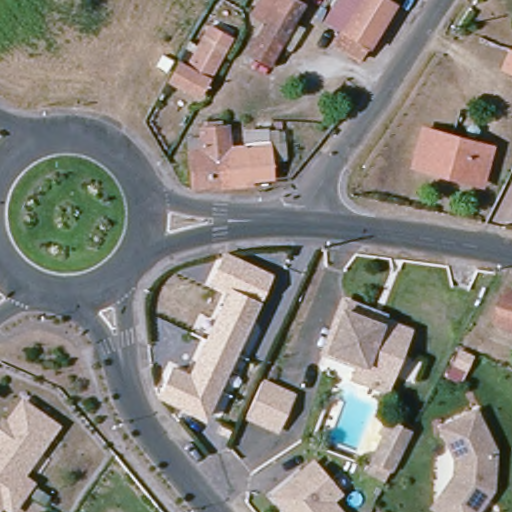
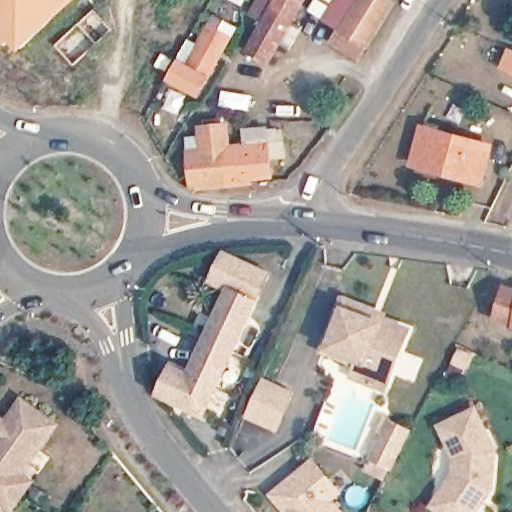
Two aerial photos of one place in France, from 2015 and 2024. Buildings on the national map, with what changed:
new [(0,0),(74,0),(21,47),(0,24),(0,17),(4,21),(0,17),(0,0)]
unchanged [(265,0),(299,0),(305,3),(265,72),(245,61),(266,25),(255,19),(265,0)]
unchanged [(366,46),(359,60),(334,45),(342,31),(323,19),(335,0),(360,0),(390,18),(371,49),(366,46)]
unchanged [(398,5),(390,18),(360,0),(397,0),(395,2),(398,5)]
new [(5,45),(0,40),(0,24),(12,38),(5,45)]
unchanged [(220,45),(189,101),(161,86),(171,68),(179,72),(195,42),(200,33),(220,45)]
unchanged [(512,54),(512,75),(501,70),(509,53),(512,54)]
demolished [(162,66),(155,77),(145,71),(151,60),(162,66)]
unchanged [(183,194),(180,156),(192,155),(191,134),(217,131),(220,152),(216,153),(220,191),(183,194)]
unchanged [(485,151),(475,188),(408,171),(418,133),(485,151)]
unchanged [(236,150),(235,138),(259,136),(262,181),(241,183),(242,190),(220,191),(216,153),(220,152),(236,150)]
unchanged [(201,421),(159,402),(160,397),(171,373),(187,379),(190,380),(229,295),(210,286),(220,268),(225,259),(225,258),(225,259),(245,269),(270,282),(209,412),(204,423),(201,421)]
unchanged [(512,301),(512,336),(503,333),(505,328),(489,323),(497,297),(512,301)]
unchanged [(383,389),(351,378),(356,361),(326,351),(343,302),(368,310),(380,315),(377,325),(403,334),(383,389)]
unchanged [(265,386),(295,401),(281,430),(252,415),(265,386)]
unchanged [(0,486),(0,471),(0,470),(0,449),(3,444),(9,443),(12,437),(10,433),(26,410),(59,432),(25,483),(35,490),(26,503),(21,500),(0,486)]
unchanged [(451,491),(460,477),(462,460),(448,426),(483,412),(500,453),(497,490),(482,512),(444,512),(439,508),(451,491)]
unchanged [(380,421),(400,430),(380,471),(362,461),(380,421)]
unchanged [(280,495),(310,467),(337,496),(329,505),(336,512),(280,512),(280,495)]
unchanged [(6,510),(5,512),(0,512),(0,486),(21,500),(26,503),(20,512),(10,512),(6,510)]

